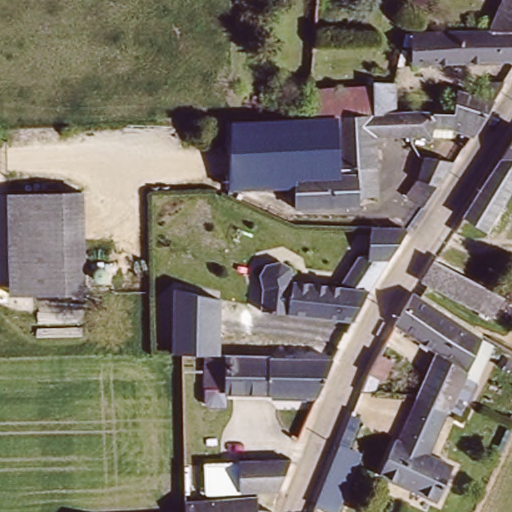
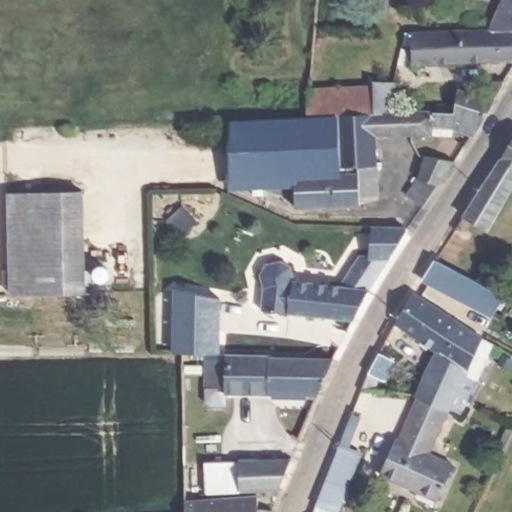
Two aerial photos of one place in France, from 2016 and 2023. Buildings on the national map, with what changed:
unchanged [(512,0),(512,35),(495,35),(512,0)]
unchanged [(495,35),(512,35),(512,67),(510,70),(410,64),(401,64),(402,51),(403,31),(413,32),(495,35)]
unchanged [(296,176),(340,174),(340,114),(310,115),(310,84),(370,85),(370,81),(396,80),(396,112),(414,111),(414,133),(426,133),(426,139),(415,139),(376,139),(372,197),(362,197),(362,204),(295,203),(295,182),(296,176)]
unchanged [(426,139),(426,133),(414,133),(414,111),(432,110),(432,102),(450,101),(455,91),(476,99),(485,82),(503,86),(491,106),(470,141),(460,137),(457,147),(437,142),(426,139)]
unchanged [(226,117),(310,115),(340,114),(340,174),(296,176),(295,182),(271,182),(222,182),(226,117)]
unchanged [(450,233),(512,136),(512,197),(508,195),(476,248),(450,233)]
unchanged [(420,211),(411,202),(420,187),(413,185),(420,171),(423,162),(448,170),(433,191),(420,211)]
unchanged [(7,256),(6,199),(82,197),(83,296),(7,297),(7,256)]
unchanged [(365,256),(372,257),(379,225),(412,228),(371,290),(347,285),(365,256)]
unchanged [(415,278),(430,256),(503,293),(490,318),(415,278)]
unchanged [(262,286),(258,272),(265,263),(281,258),(291,263),(292,276),(284,316),(259,312),(262,286)]
unchanged [(347,285),(371,290),(350,322),(289,310),(294,277),(347,285)]
unchanged [(210,351),(186,352),(173,352),(177,291),(221,295),(218,348),(247,348),(247,353),(333,367),(320,398),(233,386),(233,383),(209,382),(210,351)]
unchanged [(448,465),(430,498),(372,467),(390,435),(394,437),(418,392),(437,356),(388,328),(405,297),(483,338),(465,374),(476,380),(458,415),(447,408),(425,452),(448,465)]
unchanged [(358,399),(373,367),(390,376),(380,395),(374,392),(372,398),(357,400),(358,399)]
unchanged [(340,446),(361,457),(338,511),(317,502),(340,446)]
unchanged [(239,455),(239,462),(233,462),(236,493),(203,495),(205,459),(239,455)]
unchanged [(242,460),(292,461),(278,492),(262,492),(241,492),(242,460)]
unchanged [(185,497),(260,499),(264,512),(184,512),(185,497)]

